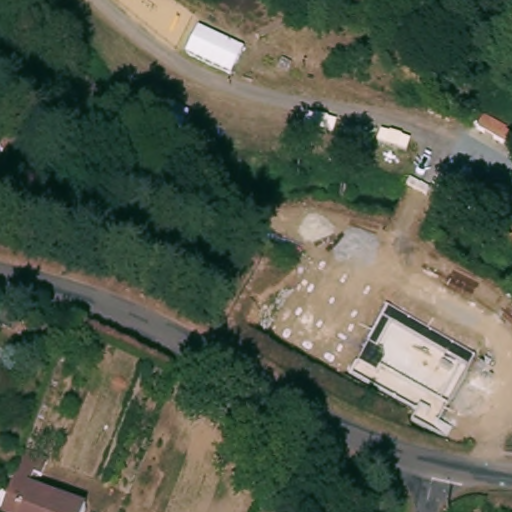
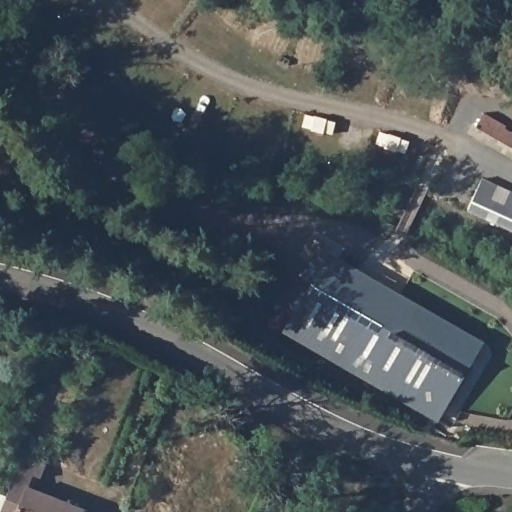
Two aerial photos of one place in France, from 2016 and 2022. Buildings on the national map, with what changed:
unchanged [(186,53),(199,25),(244,45),(231,72),(186,53)]
unchanged [(476,116),(512,129),(512,147),(470,132),(476,116)]
new [(331,251),(484,340),(439,420),(286,331),(331,251)]
unchanged [(63,464),(56,477),(51,476),(46,488),(97,512),(14,512),(40,453),(63,464)]

